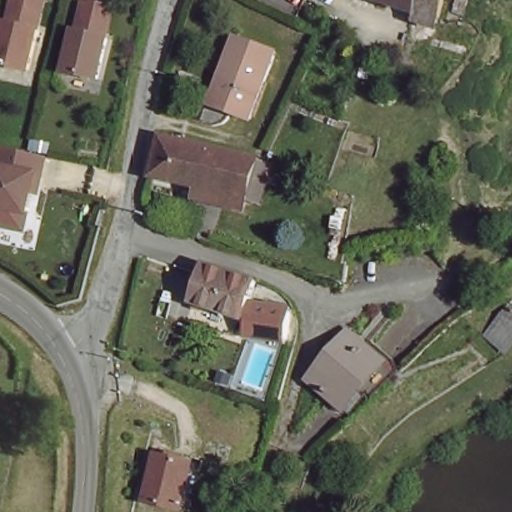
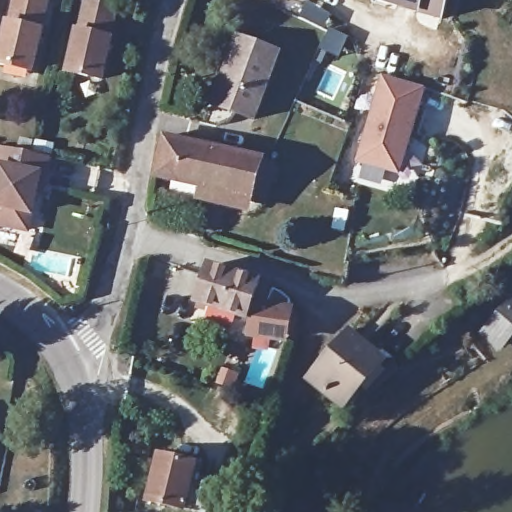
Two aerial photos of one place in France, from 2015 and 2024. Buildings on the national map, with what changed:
unchanged [(9,0),(44,0),(52,2),(35,73),(0,64),(0,36),(9,0)]
unchanged [(418,13),(373,0),(443,0),(440,19),(418,13)]
unchanged [(113,6),(106,38),(109,39),(99,78),(67,69),(76,31),(79,30),(86,1),(103,4),(113,6)]
unchanged [(229,65),(239,37),(281,49),(258,116),(233,107),(217,102),(229,65)]
new [(381,74),(427,88),(400,177),(353,163),(381,74)]
unchanged [(266,158),(253,203),(158,177),(169,135),(266,158)]
unchanged [(51,158),(47,177),(43,194),(37,193),(28,229),(0,223),(0,167),(0,145),(5,146),(35,154),(51,158)]
unchanged [(200,304),(213,265),(239,272),(226,311),(200,304)]
unchanged [(266,283),(253,319),(226,311),(239,272),(266,283)]
unchanged [(503,344),(486,326),(511,297),(512,297),(512,341),(507,347),(503,344)]
unchanged [(298,312),(295,343),(257,335),(262,306),(298,312)]
unchanged [(382,360),(342,407),(312,379),(314,373),(354,331),(382,360)]
unchanged [(196,512),(193,512),(183,510),(147,501),(158,453),(192,460),(205,463),(196,512)]

